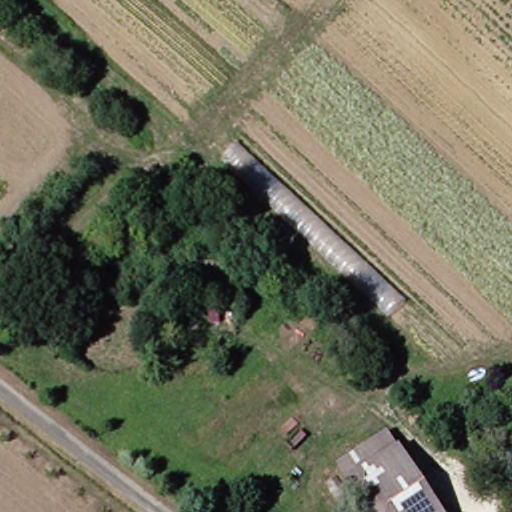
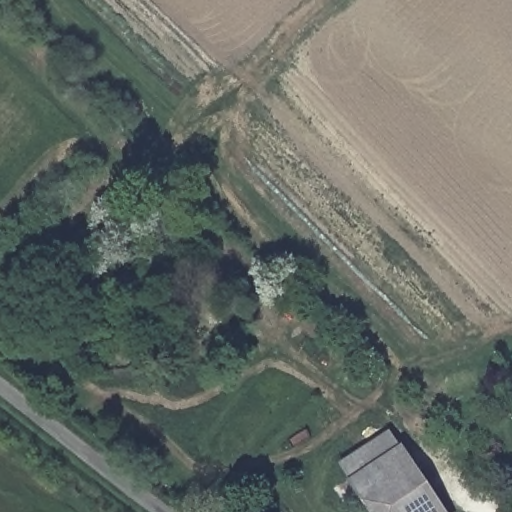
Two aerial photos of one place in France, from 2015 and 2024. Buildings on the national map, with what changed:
unchanged [(373,469),(350,485),(341,471),(391,437),(401,451),(373,469)]
unchanged [(373,469),(401,451),(443,512),(402,512),(373,469)]
unchanged [(350,485),(373,469),(402,512),(369,512),(350,485)]

